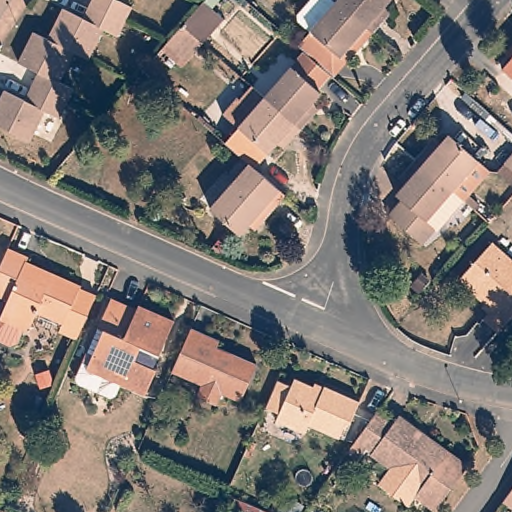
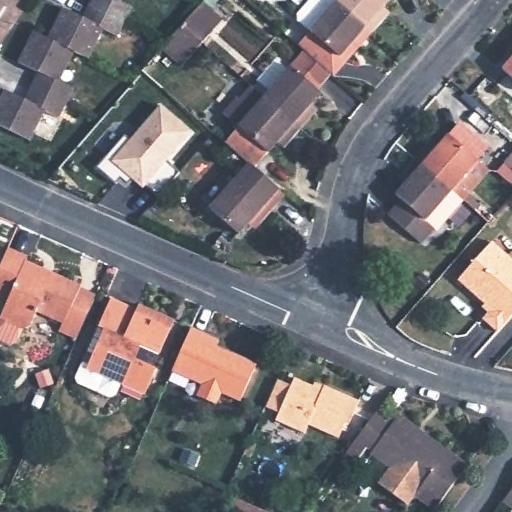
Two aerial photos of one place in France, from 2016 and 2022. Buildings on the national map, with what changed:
unchanged [(41,67),(20,57),(34,27),(50,35),(63,7),(85,17),(93,0),(126,0),(135,4),(127,20),(120,34),(104,27),(91,55),(74,47),(60,77),(76,84),(61,114),(46,106),(30,139),(0,124),(0,96),(5,87),(27,97),(41,67)]
unchanged [(339,56),(309,30),(336,0),(372,32),(358,47),(351,42),(339,56)]
unchanged [(385,16),(372,32),(336,0),(388,0),(379,11),(385,16)]
unchanged [(163,47),(183,25),(204,1),(224,19),(203,42),(182,65),(163,47)]
unchanged [(339,56),(313,88),(289,67),(270,87),(258,77),(279,53),(290,61),(301,48),(296,44),(309,30),(339,56)]
unchanged [(512,43),(512,50),(509,47),(512,43)]
unchanged [(512,76),(502,67),(512,56),(512,76)]
unchanged [(270,87),(289,67),(313,88),(321,95),(295,123),(263,95),(270,87)]
unchanged [(238,126),(223,112),(250,83),(263,95),(295,123),(300,127),(286,143),(279,137),(253,166),(248,161),(224,141),(238,126)]
new [(117,182),(115,184),(96,167),(124,135),(130,140),(160,106),(191,133),(166,162),(179,172),(158,197),(144,186),(142,188),(132,179),(127,185),(124,187),(117,182)]
unchanged [(436,149),(449,135),(477,160),(448,191),(414,161),(430,143),(436,149)]
unchanged [(512,149),(512,173),(500,163),(512,149)]
unchanged [(257,224),(251,219),(238,234),(208,207),(248,161),(253,166),(284,193),(257,224)]
unchanged [(424,219),(432,226),(419,241),(389,215),(403,199),(396,194),(409,180),(402,174),(414,161),(448,191),(424,219)]
unchanged [(482,321),(490,312),(457,281),(490,244),(512,263),(512,318),(497,335),(482,321)]
unchanged [(30,262),(82,287),(64,326),(41,315),(33,327),(26,328),(2,317),(9,301),(0,297),(0,262),(7,246),(32,257),(30,262)]
unchanged [(117,386),(113,393),(108,396),(76,381),(74,376),(110,300),(134,311),(136,306),(174,322),(157,358),(146,353),(143,360),(137,357),(133,364),(151,372),(140,396),(117,386)]
unchanged [(174,362),(191,325),(220,338),(214,352),(230,360),(233,353),(258,365),(240,403),(221,394),(213,407),(193,398),(199,385),(189,380),(170,372),(174,362)]
unchanged [(291,386),(317,397),(319,393),(355,408),(346,430),(342,428),(333,446),(307,435),(305,438),(277,427),(280,422),(262,414),(276,385),(290,391),(291,386)]
unchanged [(396,417),(465,467),(435,507),(417,493),(422,486),(368,447),(358,460),(346,452),(375,412),(391,424),(396,417)]
unchanged [(512,510),(502,503),(512,488),(512,510)]

